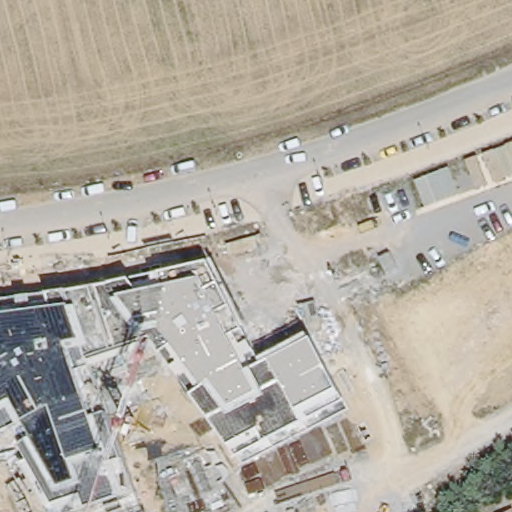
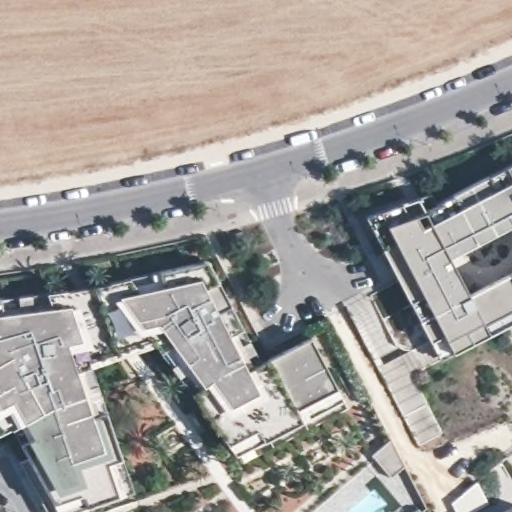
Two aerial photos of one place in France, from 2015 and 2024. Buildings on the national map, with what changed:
new [(457,350),(455,345),(439,352),(367,213),(418,194),(425,205),(512,160),(512,320),(457,350)]
unchanged [(213,260),(248,326),(244,328),(260,357),(309,333),(344,398),(235,454),(193,395),(152,341),(93,365),(108,412),(124,457),(134,493),(119,497),(88,507),(71,512),(48,512),(20,461),(28,457),(10,425),(0,430),(0,298),(98,286),(213,260)]
new [(395,446),(408,472),(392,481),(372,457),(395,446)]
new [(475,512),(459,512),(455,504),(480,483),(491,503),(475,512)]
new [(505,512),(512,508),(512,512),(505,512)]

